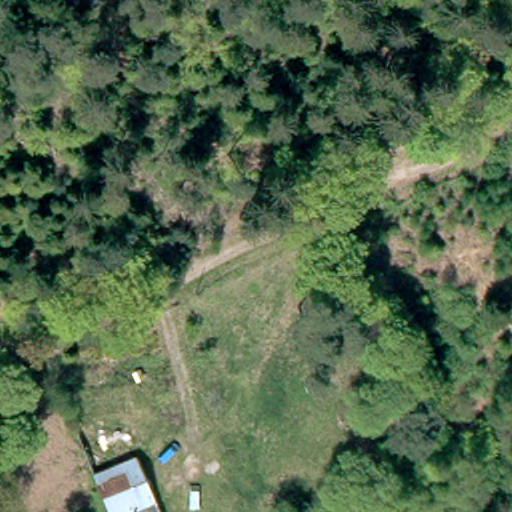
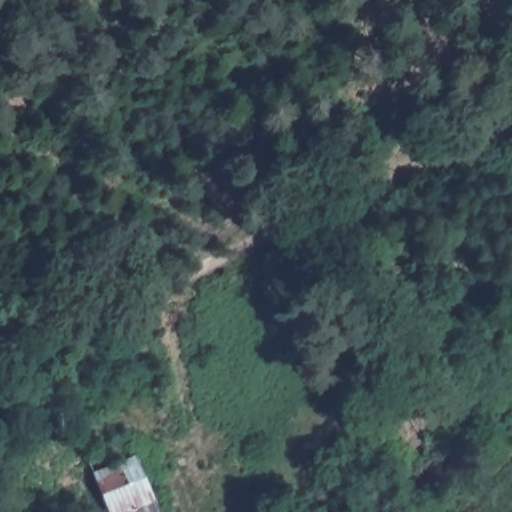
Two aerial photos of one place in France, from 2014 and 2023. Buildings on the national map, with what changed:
unchanged [(140,460),(161,512),(110,512),(107,505),(97,480),(96,477),(140,460)]

